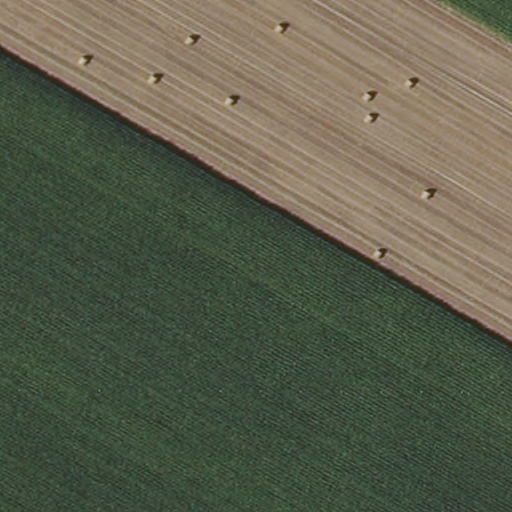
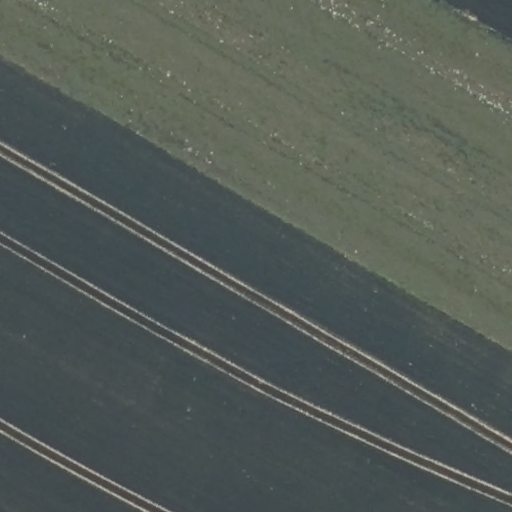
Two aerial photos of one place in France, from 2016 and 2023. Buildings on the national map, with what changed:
[]

